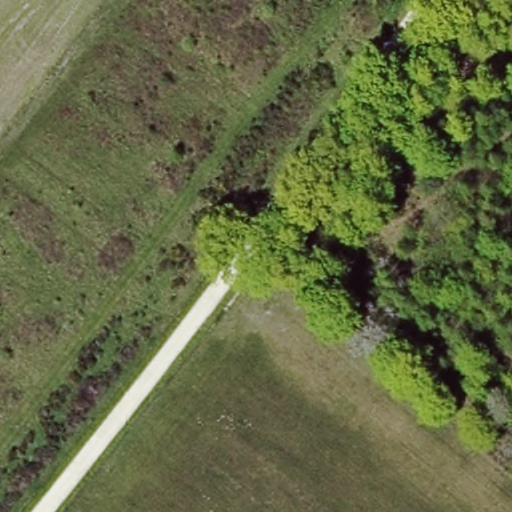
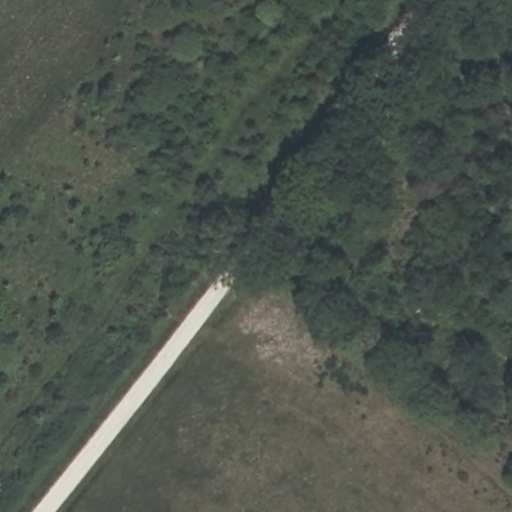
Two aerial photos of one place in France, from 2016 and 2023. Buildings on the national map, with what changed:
[]

